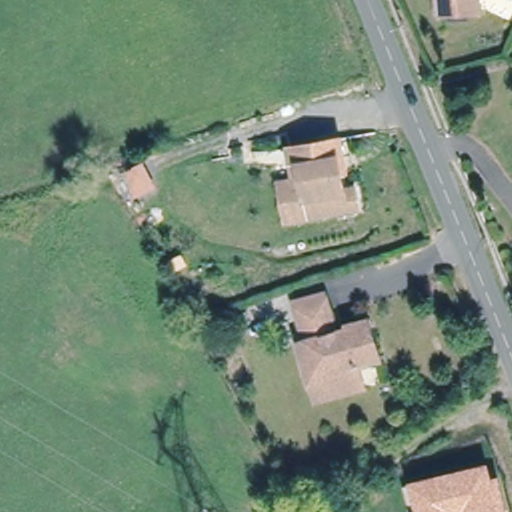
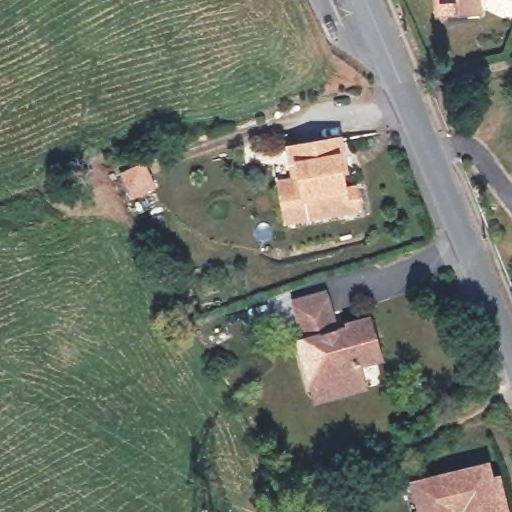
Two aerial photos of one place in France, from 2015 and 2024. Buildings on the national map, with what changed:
unchanged [(474,13),(433,15),(432,0),(473,0),(474,13)]
unchanged [(285,179),(282,165),(280,148),(289,146),(330,139),(332,156),(335,170),(330,171),(333,190),(345,188),(348,208),(297,217),(277,221),(270,182),(285,179)]
unchanged [(307,387),(295,343),(301,341),(290,301),(322,293),(333,333),(342,330),(341,325),(361,320),(366,318),(377,358),(372,359),(353,365),(356,373),(360,387),(311,401),(307,387)]
unchanged [(492,474),(500,472),(509,512),(418,512),(410,480),(490,458),(492,474)]

